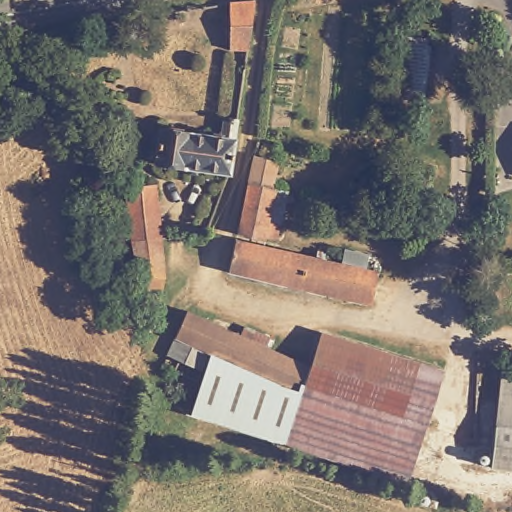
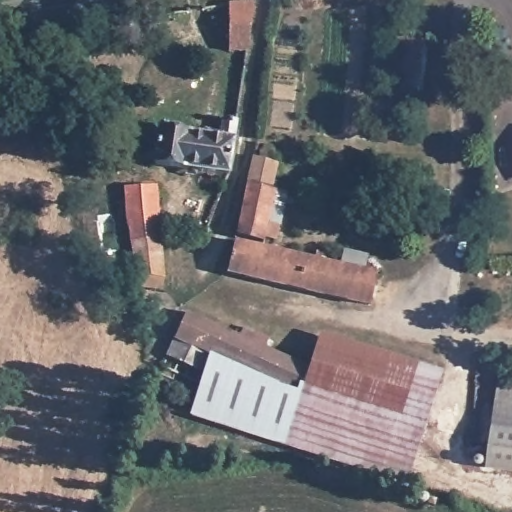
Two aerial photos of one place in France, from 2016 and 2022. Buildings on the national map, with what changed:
unchanged [(229,51),(230,3),(252,0),(248,52),(229,51)]
unchanged [(387,111),(396,33),(433,36),(427,107),(387,111)]
unchanged [(157,164),(162,130),(219,139),(222,118),(238,121),(229,176),(157,164)]
unchanged [(284,226),(280,243),(264,239),(264,242),(238,236),(253,157),(259,157),(260,152),(263,149),(265,148),(269,148),(272,148),(274,150),(274,154),(274,158),(273,162),(278,163),(273,190),(277,191),(278,187),(291,191),(290,203),(289,215),(284,226)]
unchanged [(132,241),(125,186),(158,186),(163,242),(132,241)]
unchanged [(163,289),(138,289),(138,275),(132,241),(163,242),(166,283),(163,289)]
unchanged [(271,283),(226,273),(234,241),(278,251),(271,283)]
unchanged [(371,305),(271,283),(278,251),(315,259),(324,261),(341,264),(344,247),(368,254),(365,269),(378,272),(371,305)]
unchanged [(211,354),(211,355),(209,353),(200,371),(166,355),(187,312),(236,332),(240,323),(255,329),(241,368),(211,354)]
unchanged [(300,383),(296,393),(241,368),(255,329),(268,335),(263,345),(308,367),(300,383)]
unchanged [(410,470),(197,394),(211,355),(211,354),(241,368),(296,393),(300,383),(305,385),(319,344),(440,386),(425,427),(410,470)]
unchanged [(503,376),(512,377),(512,449),(494,445),(503,376)]
unchanged [(197,394),(410,470),(404,485),(189,418),(197,394)]
unchanged [(512,449),(512,471),(490,468),(494,445),(512,449)]

